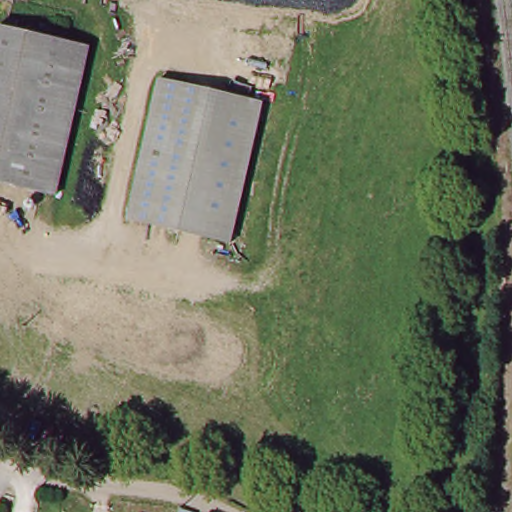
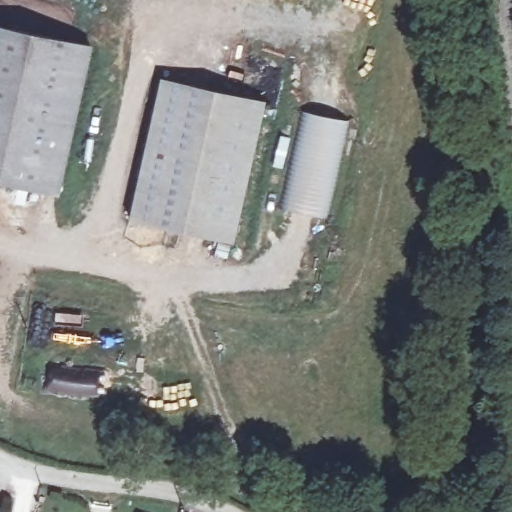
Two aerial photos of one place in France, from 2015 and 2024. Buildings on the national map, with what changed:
unchanged [(0,183),(0,29),(87,46),(56,195),(0,183)]
unchanged [(235,241),(130,217),(161,79),(266,102),(235,241)]
new [(290,162),(300,109),(350,121),(327,218),(278,206),(290,162)]

